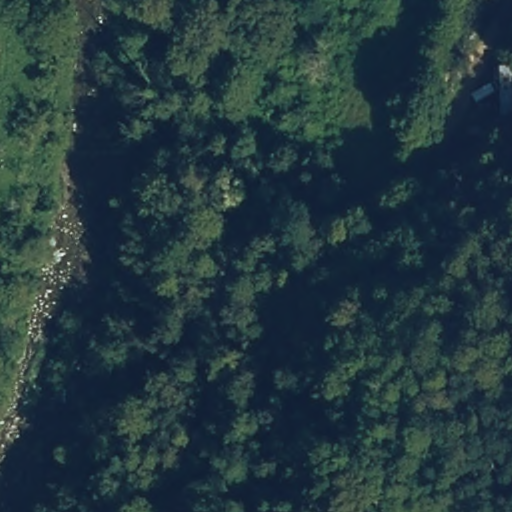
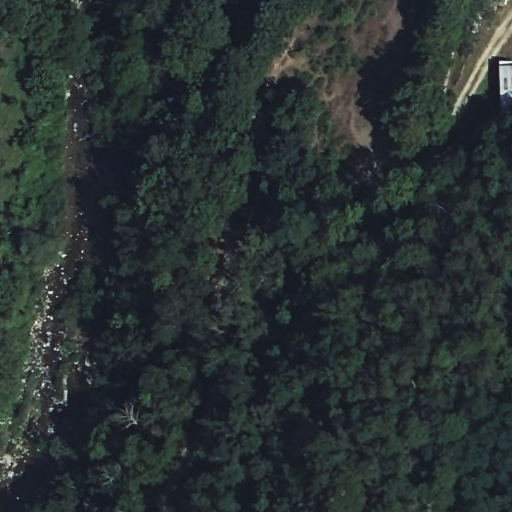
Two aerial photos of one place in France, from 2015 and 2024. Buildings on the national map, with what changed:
unchanged [(512,74),(512,121),(500,122),(502,75),(512,74)]

